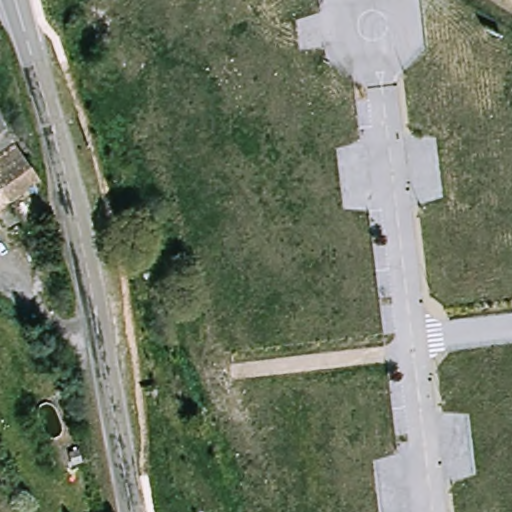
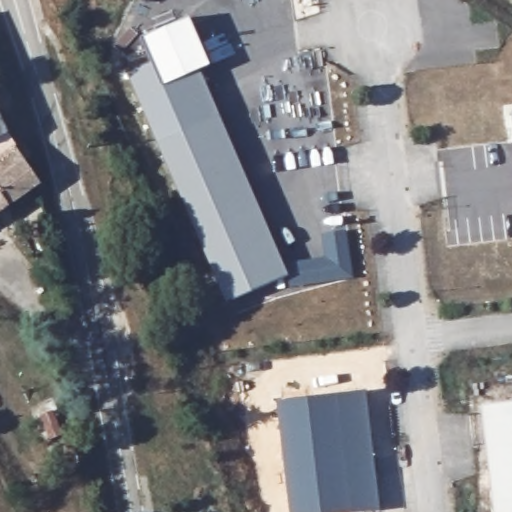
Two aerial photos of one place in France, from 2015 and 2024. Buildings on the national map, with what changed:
new [(187,14),(206,64),(157,82),(138,34),(187,14)]
new [(218,114),(156,142),(126,74),(150,64),(157,82),(198,66),(218,114)]
new [(512,112),(512,125),(510,112),(512,112)]
new [(218,114),(282,264),(323,257),(320,234),(345,231),(352,278),(289,289),(285,276),(225,303),(156,142),(218,114)]
unchanged [(17,145),(0,158),(0,116),(17,145)]
unchanged [(20,155),(27,184),(0,206),(0,170),(20,155)]
demolished [(0,330),(0,293),(1,292),(21,315),(0,330)]
new [(377,509),(357,512),(290,512),(276,402),(363,392),(377,509)]
new [(479,406),(512,402),(512,512),(492,512),(479,406)]

